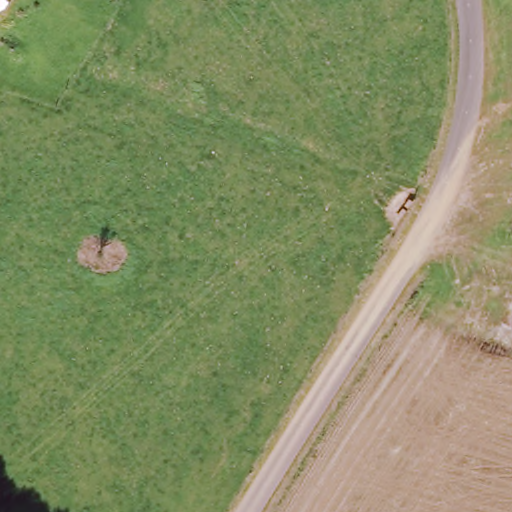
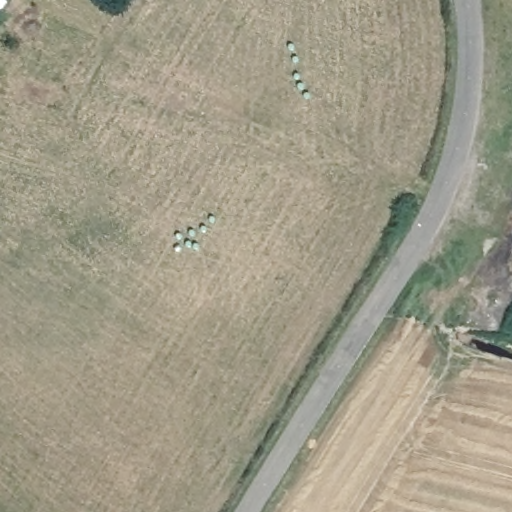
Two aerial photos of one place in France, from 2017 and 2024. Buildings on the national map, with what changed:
unchanged [(0,0),(3,0),(0,8),(0,0)]

